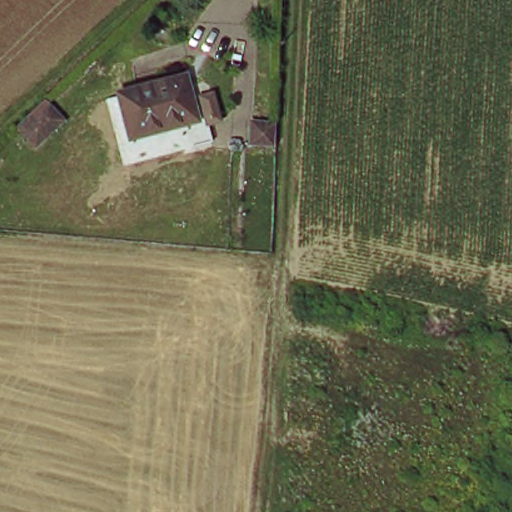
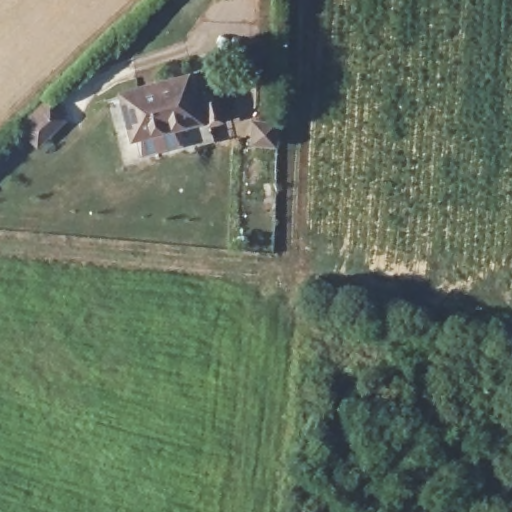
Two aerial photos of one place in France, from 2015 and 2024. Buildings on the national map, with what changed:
unchanged [(112,81),(177,64),(189,106),(122,123),(112,81)]
unchanged [(201,103),(207,128),(121,149),(114,125),(122,123),(189,106),(201,103)]
unchanged [(30,145),(15,130),(42,104),(58,120),(30,145)]
unchanged [(247,147),(247,126),(275,125),(274,149),(247,147)]

